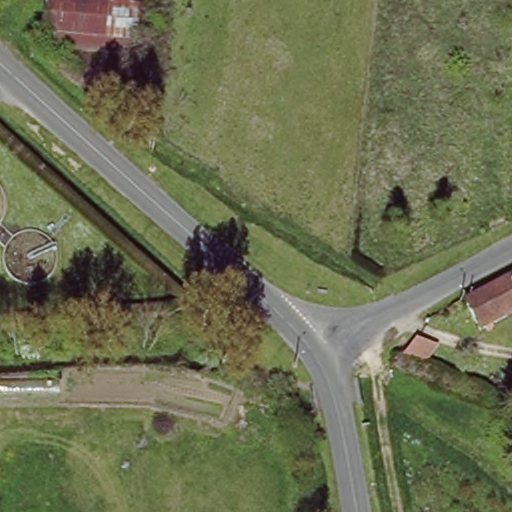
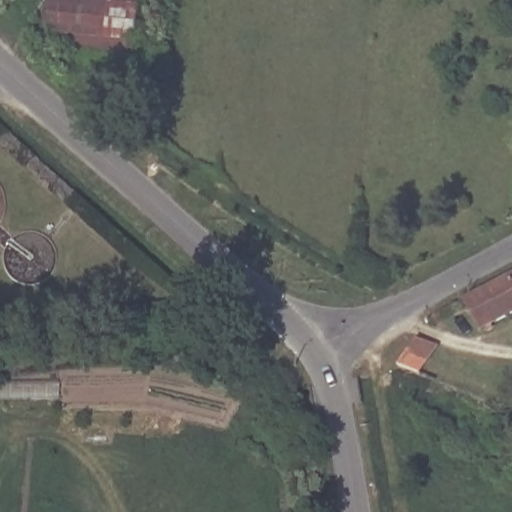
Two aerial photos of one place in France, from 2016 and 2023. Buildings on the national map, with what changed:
unchanged [(50,45),(54,0),(120,0),(115,52),(50,45)]
unchanged [(115,52),(120,0),(144,0),(141,54),(115,52)]
unchanged [(470,297),(512,273),(512,310),(484,326),(470,297)]

